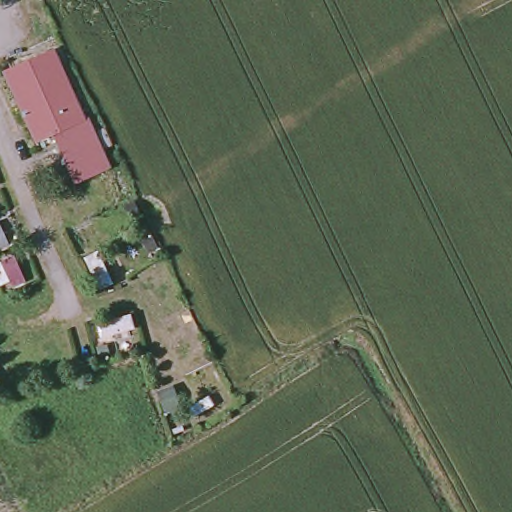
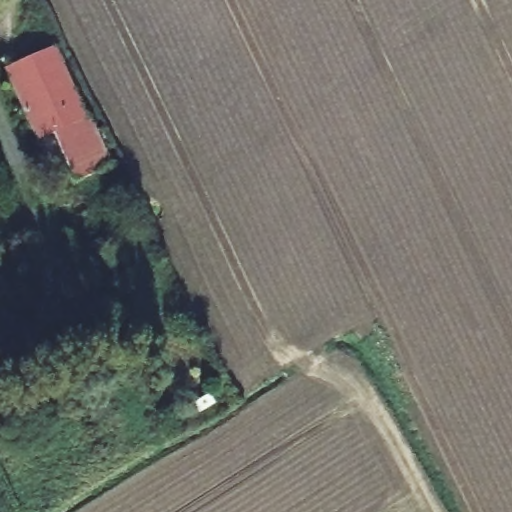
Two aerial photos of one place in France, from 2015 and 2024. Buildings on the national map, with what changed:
unchanged [(77,185),(73,178),(55,132),(37,140),(3,69),(50,46),(109,161),(112,168),(77,185)]

